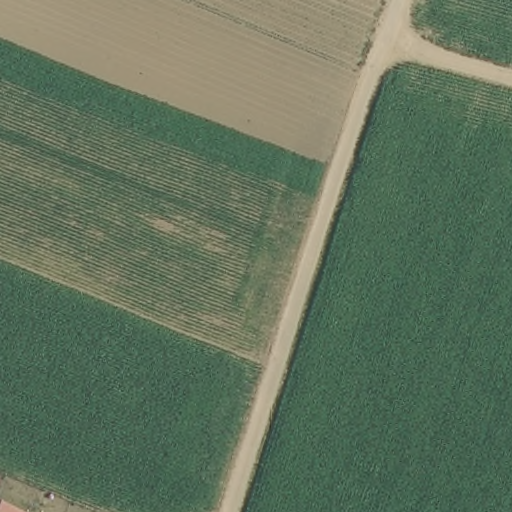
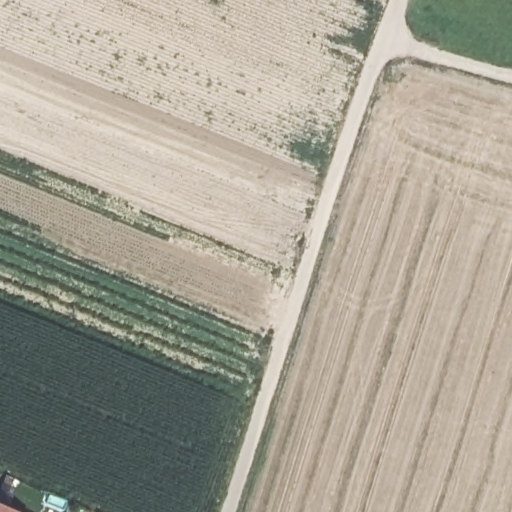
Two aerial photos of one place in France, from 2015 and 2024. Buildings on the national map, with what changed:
unchanged [(17,512),(0,512),(0,505),(17,512)]

